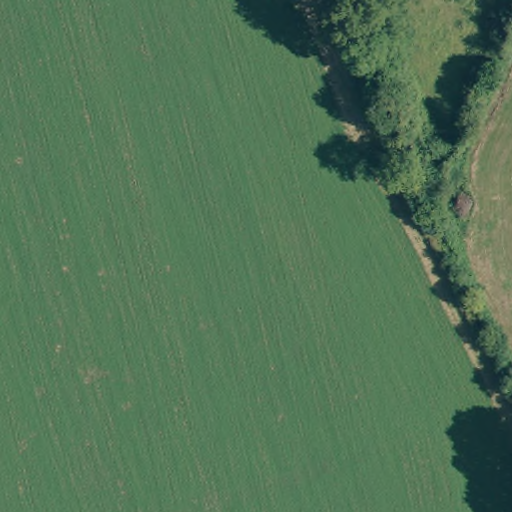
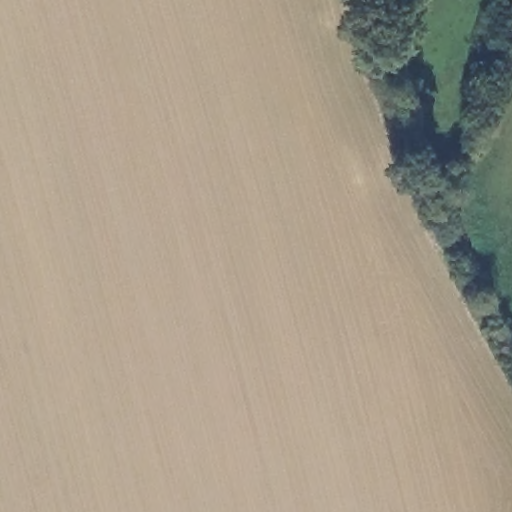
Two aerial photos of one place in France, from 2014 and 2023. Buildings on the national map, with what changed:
[]

